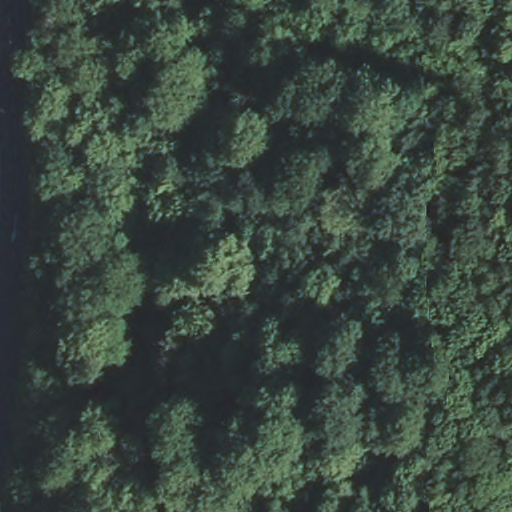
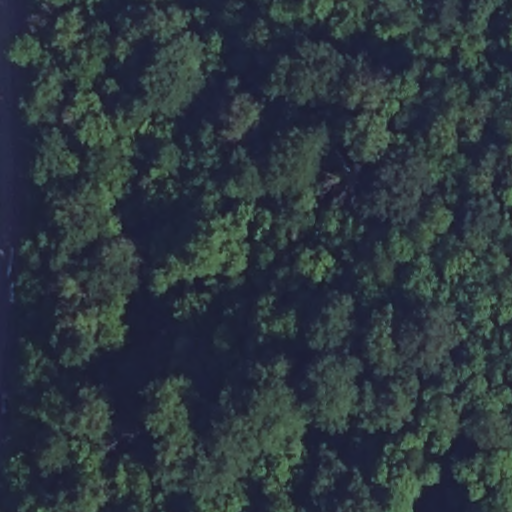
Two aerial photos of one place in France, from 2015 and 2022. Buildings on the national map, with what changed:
[]

